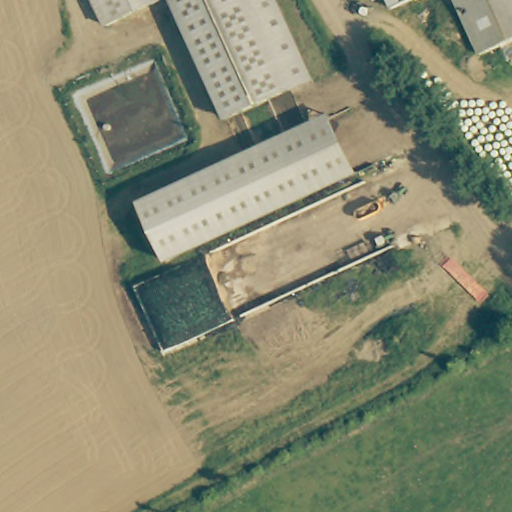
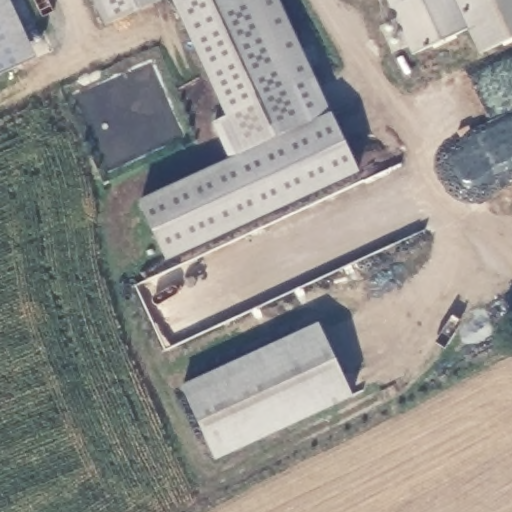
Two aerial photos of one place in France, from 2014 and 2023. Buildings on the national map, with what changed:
new [(0,73),(0,0),(9,0),(35,56),(0,73)]
unchanged [(105,26),(93,0),(161,0),(105,26)]
unchanged [(244,156),(171,0),(278,0),(331,114),(244,156)]
unchanged [(388,0),(406,0),(391,7),(388,0)]
unchanged [(477,54),(450,0),(512,0),(512,36),(477,54)]
unchanged [(361,173),(166,262),(139,201),(244,156),(331,114),(361,173)]
new [(353,398),(215,463),(180,387),(319,323),(353,398)]

